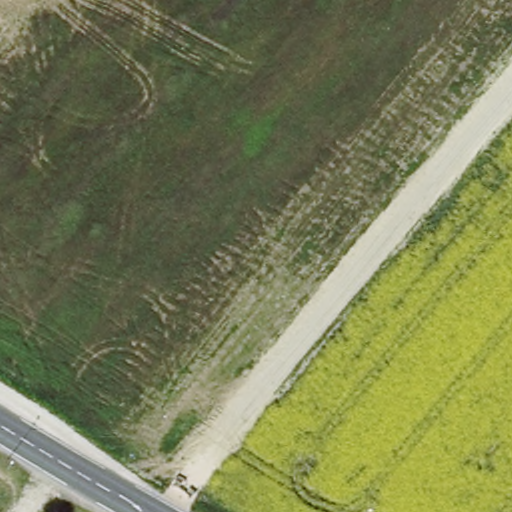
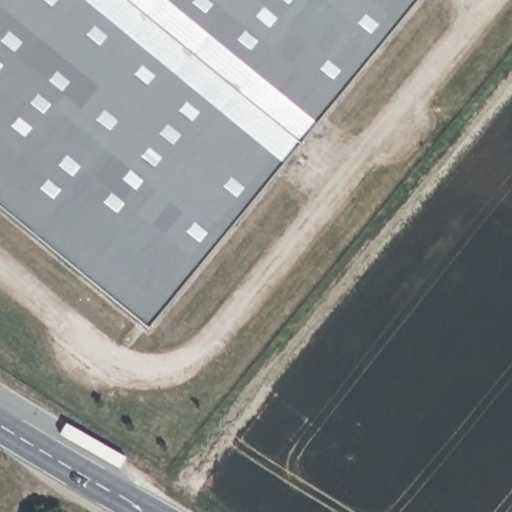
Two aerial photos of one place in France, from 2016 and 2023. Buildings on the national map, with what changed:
new [(0,207),(0,0),(420,0),(149,330),(0,207)]

